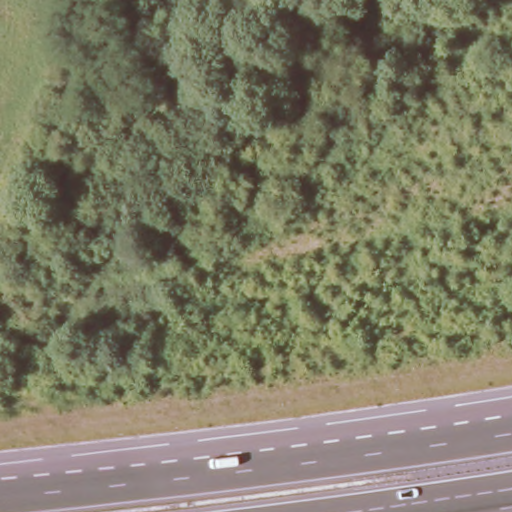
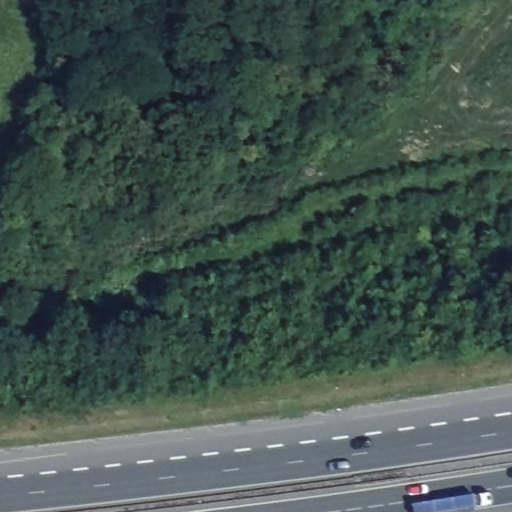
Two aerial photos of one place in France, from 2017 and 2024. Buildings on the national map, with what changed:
unchanged [(158,35),(142,63),(128,50),(145,25),(158,35)]

